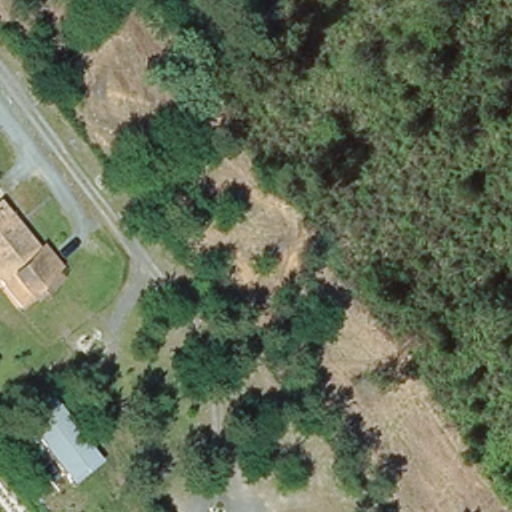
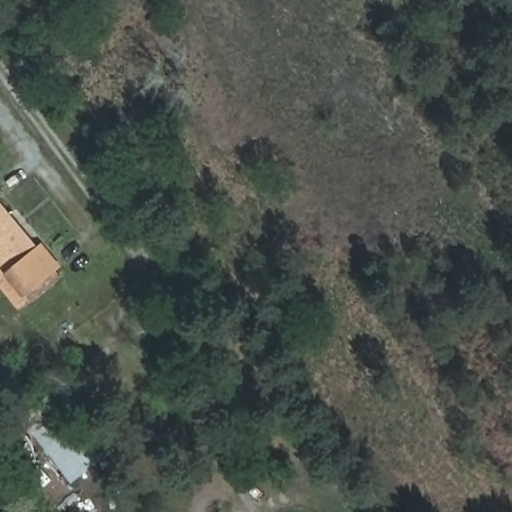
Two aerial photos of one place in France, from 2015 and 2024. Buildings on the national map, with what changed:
unchanged [(3,195),(66,276),(26,303),(0,273),(0,198),(3,195)]
unchanged [(72,480),(27,420),(54,399),(99,459),(72,480)]

